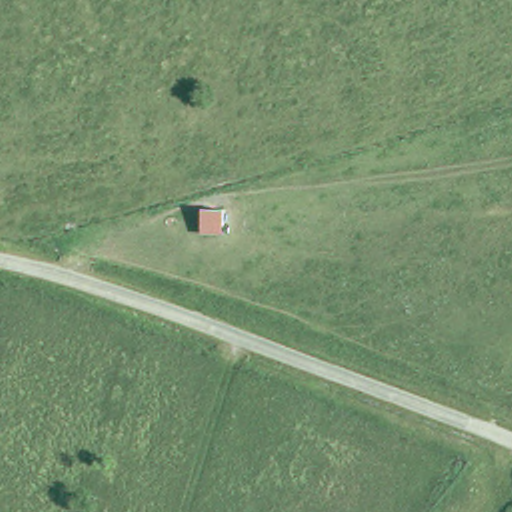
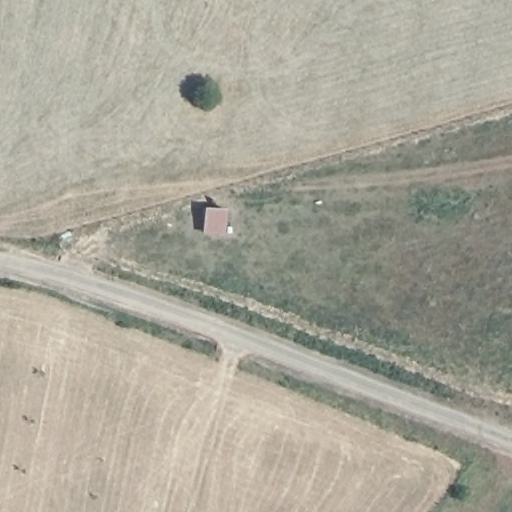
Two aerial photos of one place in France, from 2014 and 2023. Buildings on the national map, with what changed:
unchanged [(202,231),(202,210),(224,210),(224,232),(202,231)]

